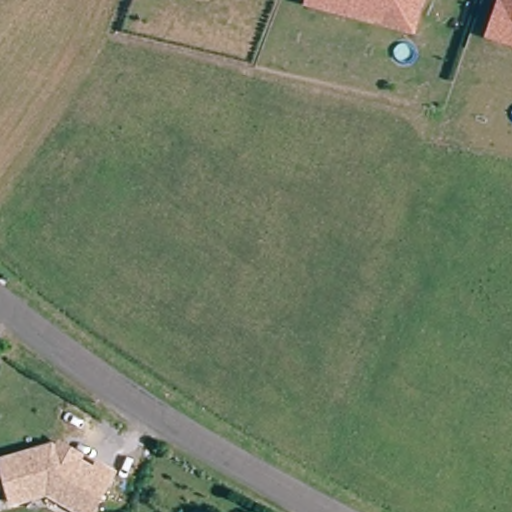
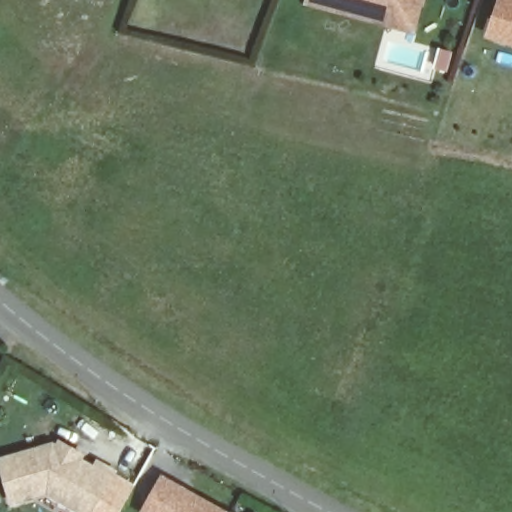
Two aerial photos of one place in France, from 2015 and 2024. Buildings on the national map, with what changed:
unchanged [(312,1),(312,0),(424,0),(422,4),(415,31),(396,25),(312,1)]
unchanged [(486,38),(499,0),(512,0),(512,46),(486,38)]
unchanged [(49,493),(14,504),(1,464),(53,448),(60,451),(62,445),(80,454),(77,460),(95,468),(98,462),(115,471),(95,512),(88,512),(49,493)]
new [(193,496),(206,502),(225,512),(146,512),(152,500),(162,480),(193,496)]

